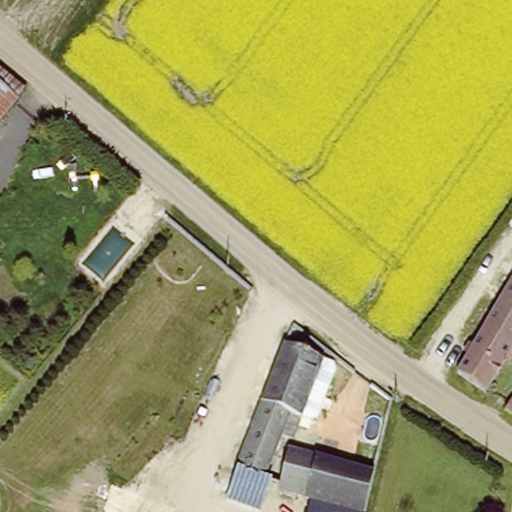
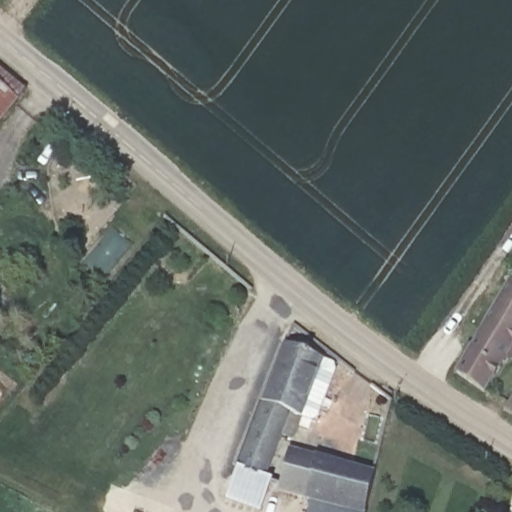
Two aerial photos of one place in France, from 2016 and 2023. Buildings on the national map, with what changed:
unchanged [(26,91),(0,123),(0,70),(26,91)]
unchanged [(487,390),(454,370),(507,283),(512,287),(512,354),(509,352),(487,390)]
unchanged [(223,490),(231,467),(277,342),(315,356),(287,435),(278,432),(268,459),(273,461),(266,480),(262,478),(254,499),(223,490)]
unchanged [(347,460),(366,384),(390,390),(361,512),(359,512),(274,489),(286,444),(347,460)]
unchanged [(512,413),(512,418),(510,416),(512,413)]

